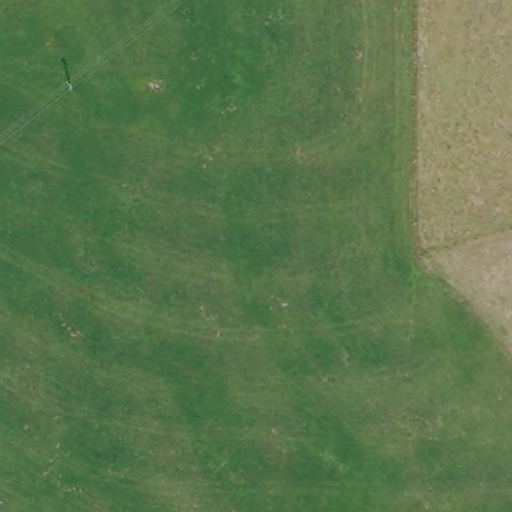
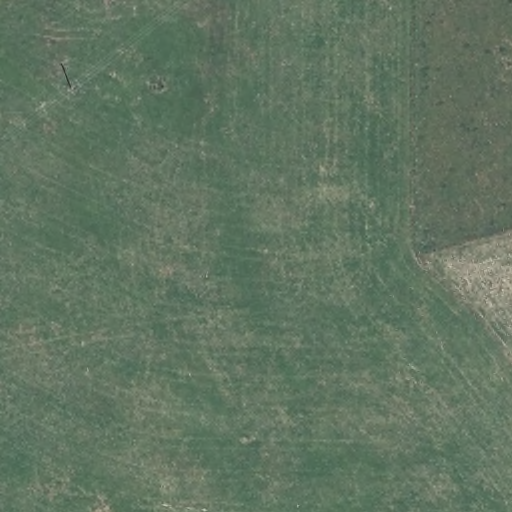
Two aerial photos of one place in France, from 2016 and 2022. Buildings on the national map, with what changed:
[]

